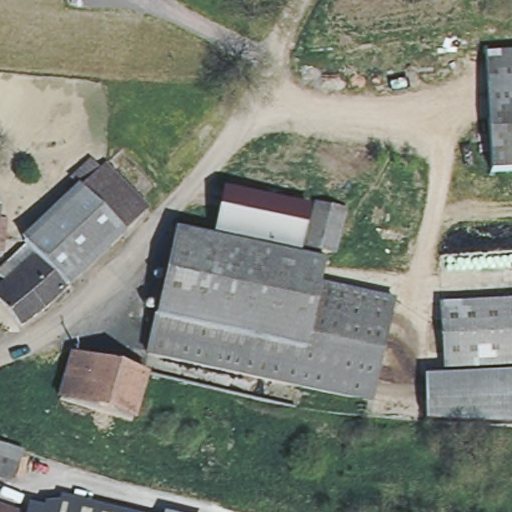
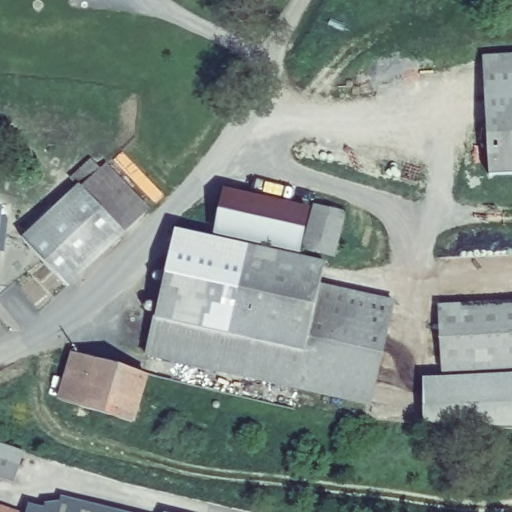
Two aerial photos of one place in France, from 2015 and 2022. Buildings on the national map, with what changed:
unchanged [(512,51),(512,174),(491,175),(483,52),(512,51)]
unchanged [(27,239),(24,236),(82,181),(73,172),(91,155),(99,165),(103,161),(146,206),(126,226),(68,283),(27,239)]
unchanged [(306,200),(296,245),(217,228),(228,184),(306,200)]
unchanged [(3,245),(0,245),(0,211),(7,212),(3,245)]
unchanged [(329,260),(324,281),(398,298),(376,398),(348,397),(149,352),(179,226),(329,260)]
unchanged [(68,283),(45,306),(21,322),(0,295),(0,285),(6,278),(0,271),(0,267),(8,260),(27,239),(68,283)]
unchanged [(512,301),(512,368),(448,370),(446,303),(512,301)]
unchanged [(148,376),(133,425),(61,401),(75,354),(148,376)]
unchanged [(512,375),(512,429),(424,426),(425,378),(512,375)]
unchanged [(13,482),(0,478),(0,444),(23,451),(13,482)]
unchanged [(64,507),(68,493),(143,512),(48,512),(50,504),(64,507)]
unchanged [(32,512),(0,512),(0,500),(33,511),(32,512)]

